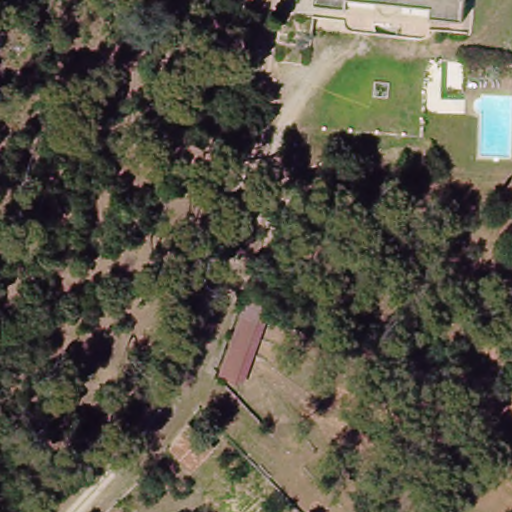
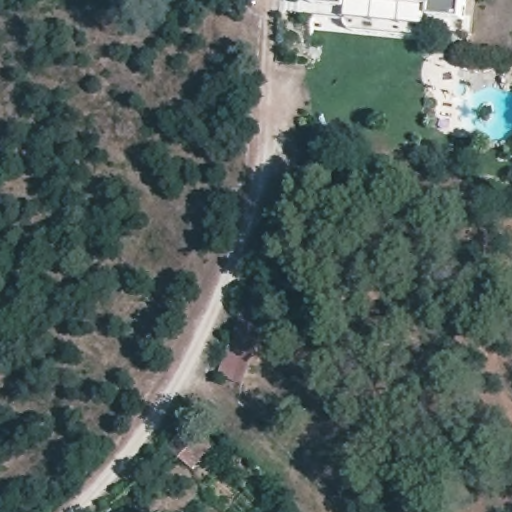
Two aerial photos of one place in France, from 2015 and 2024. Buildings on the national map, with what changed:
unchanged [(429,23),(429,14),(348,4),(346,14),(313,10),(314,0),(464,0),(462,26),(429,23)]
unchanged [(348,4),(429,14),(429,23),(423,40),(346,27),(346,14),(348,4)]
unchanged [(238,315),(255,321),(237,384),(219,377),(238,315)]
unchanged [(166,451),(184,431),(182,429),(193,417),(206,431),(202,439),(213,450),(190,472),(166,451)]

